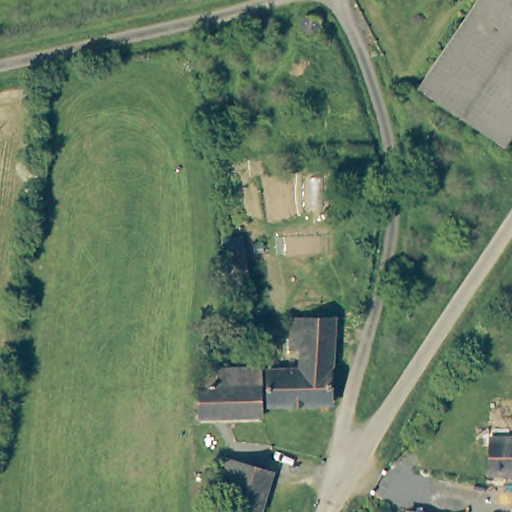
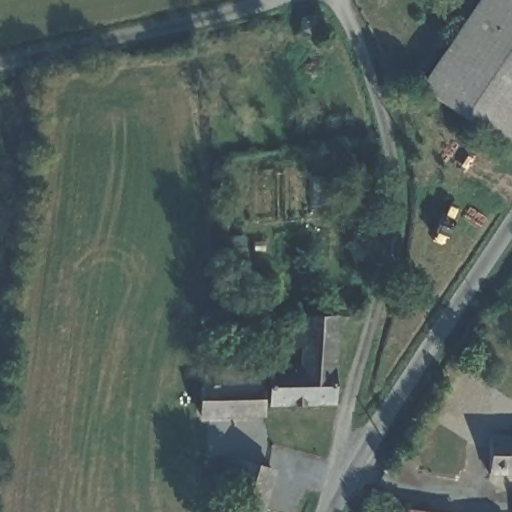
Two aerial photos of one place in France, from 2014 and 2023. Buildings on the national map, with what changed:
unchanged [(419,86),(477,0),(512,0),(512,123),(499,141),(419,86)]
unchanged [(320,21),(324,31),(307,35),(305,26),(320,21)]
unchanged [(249,288),(233,288),(229,244),(245,242),(249,288)]
unchanged [(334,400),(272,402),(270,367),(305,366),(305,345),(292,345),(292,313),(305,313),(335,313),(334,400)]
unchanged [(263,367),(263,380),(263,416),(200,416),(200,381),(208,381),(208,367),(263,367)]
unchanged [(434,420),(463,373),(495,393),(467,435),(434,420)]
unchanged [(487,471),(491,432),(512,432),(512,471),(487,471)]
unchanged [(261,512),(225,512),(228,498),(211,493),(224,454),(273,470),(261,512)]

